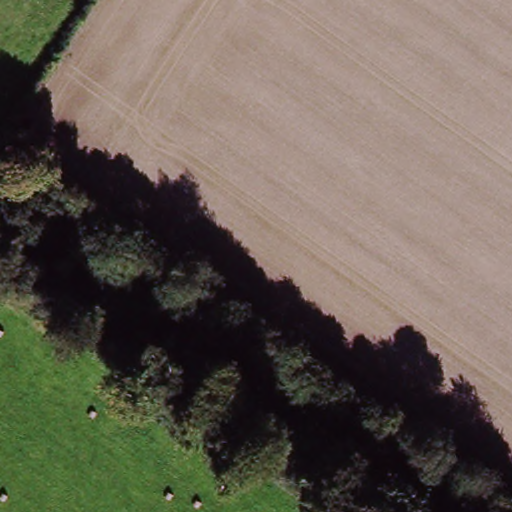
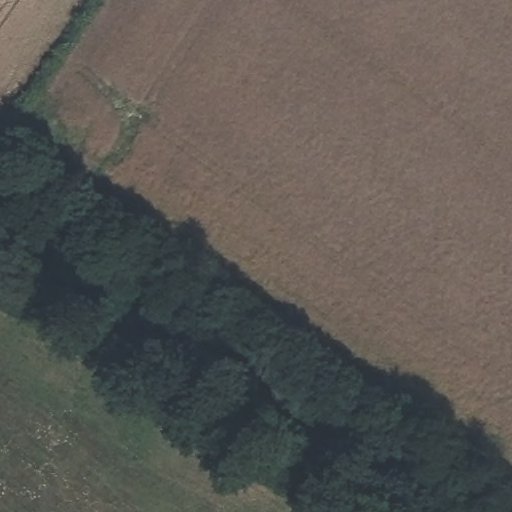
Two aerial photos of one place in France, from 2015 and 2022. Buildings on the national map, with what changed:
[]

